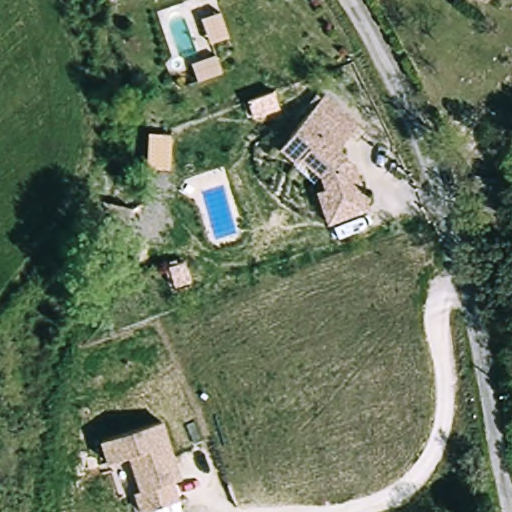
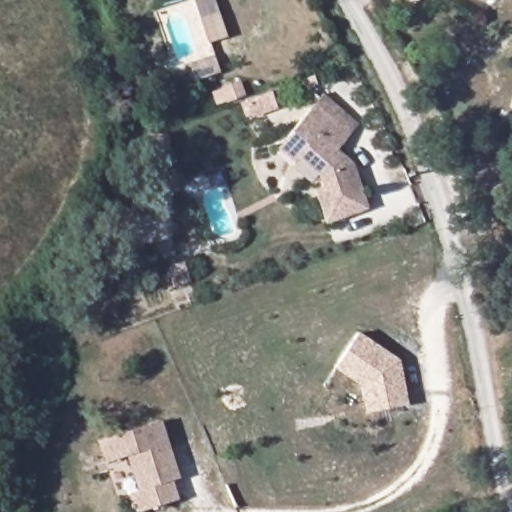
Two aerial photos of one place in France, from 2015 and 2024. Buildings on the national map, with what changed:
unchanged [(488,0),(489,0),(489,1),(488,0)]
unchanged [(207,44),(198,19),(216,11),(227,35),(207,44)]
unchanged [(195,84),(188,66),(213,58),(220,74),(195,84)]
unchanged [(320,96),(358,122),(353,134),(340,151),(350,157),(351,165),(355,171),(359,169),(373,205),(329,221),(319,188),(326,186),(320,172),(304,159),(299,166),(281,152),(290,140),(314,106),(320,96)]
unchanged [(171,293),(164,272),(180,266),(187,287),(171,293)]
new [(399,360),(408,405),(365,414),(360,387),(334,369),(357,332),(399,360)]
unchanged [(160,487),(166,506),(144,512),(127,512),(123,497),(128,495),(118,459),(97,465),(91,443),(152,426),(164,471),(168,485),(160,487)]

